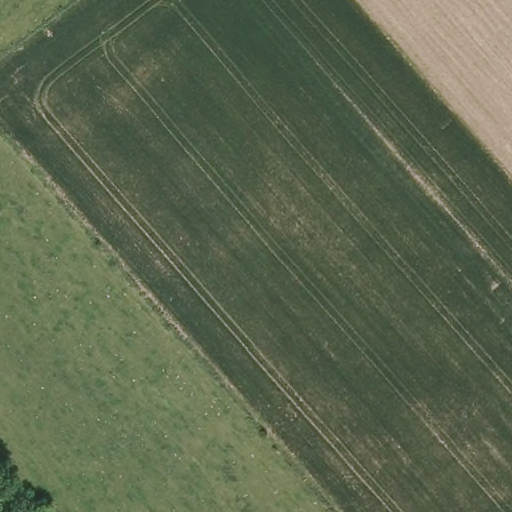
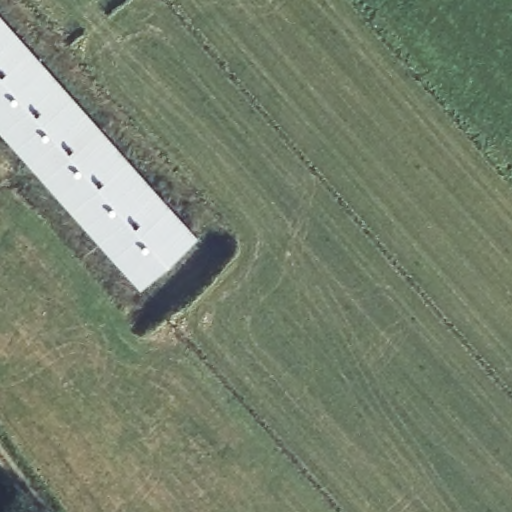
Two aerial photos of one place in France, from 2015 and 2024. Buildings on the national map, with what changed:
new [(0,130),(0,12),(200,239),(142,290),(0,130)]

